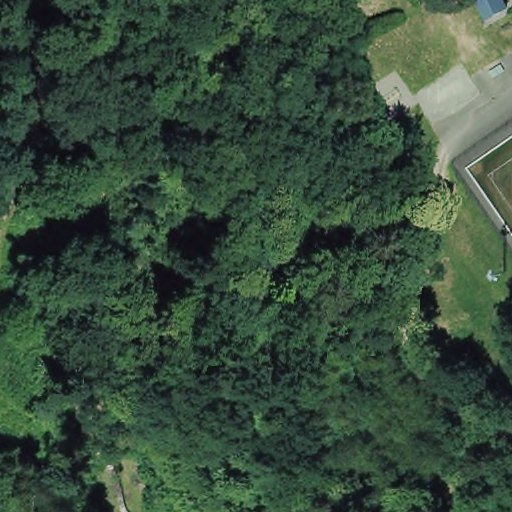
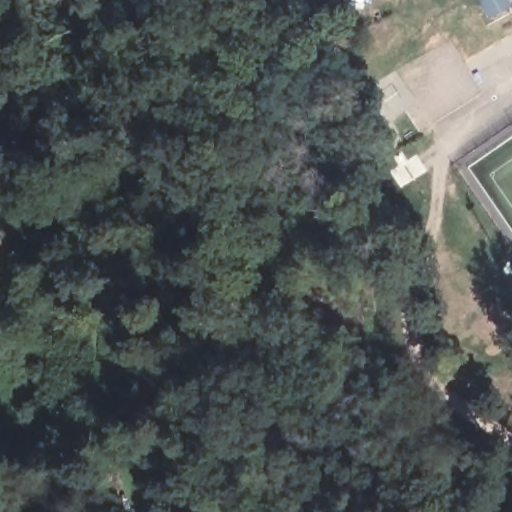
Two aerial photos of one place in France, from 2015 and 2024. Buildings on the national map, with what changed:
unchanged [(505,19),(489,28),(478,8),(494,0),(505,19)]

